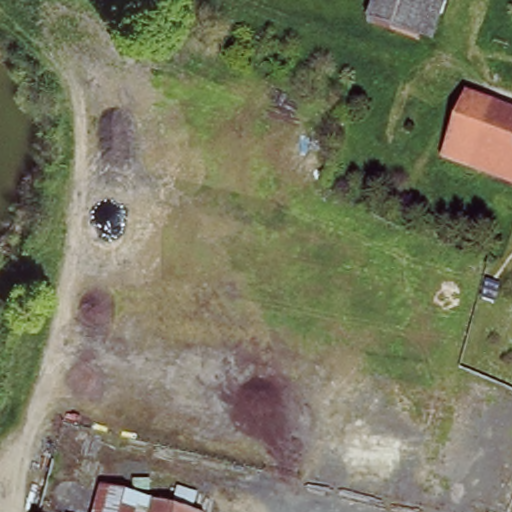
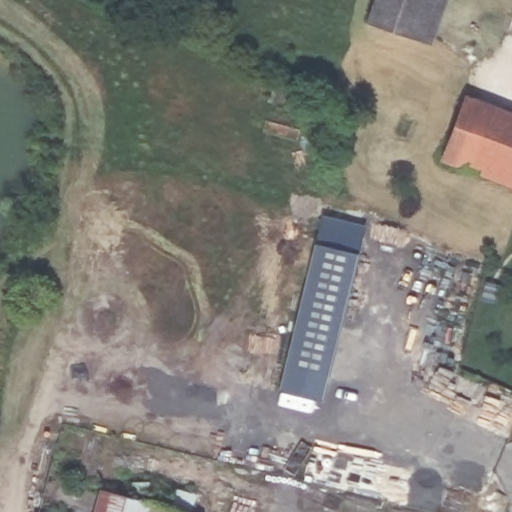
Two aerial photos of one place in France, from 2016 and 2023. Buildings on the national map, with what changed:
unchanged [(446,0),(430,45),(417,41),(368,24),(375,0),(446,0)]
unchanged [(512,113),(512,186),(444,158),(471,96),(512,113)]
new [(321,216),(364,224),(319,397),(276,386),(321,216)]
unchanged [(98,494),(168,512),(93,512),(98,494)]

